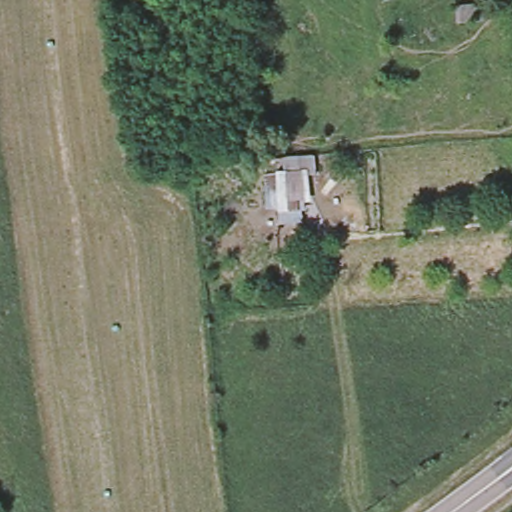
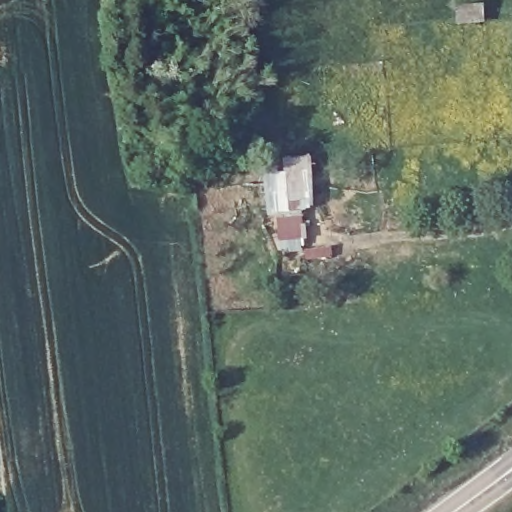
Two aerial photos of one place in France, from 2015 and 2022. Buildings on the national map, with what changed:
unchanged [(456,6),(489,4),(490,22),(457,26),(456,6)]
unchanged [(300,217),(270,218),(265,167),(280,166),(279,154),(310,152),(311,165),(301,165),(300,217)]

